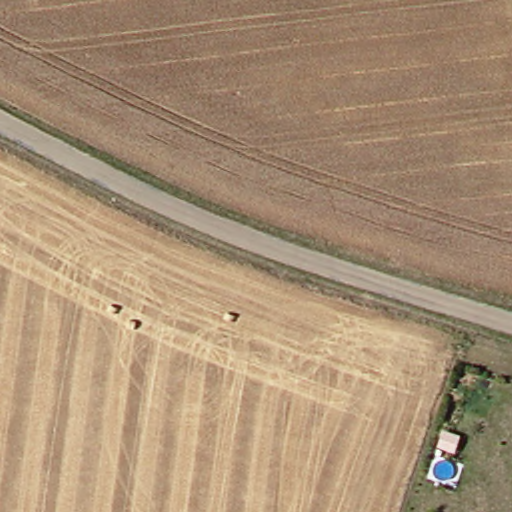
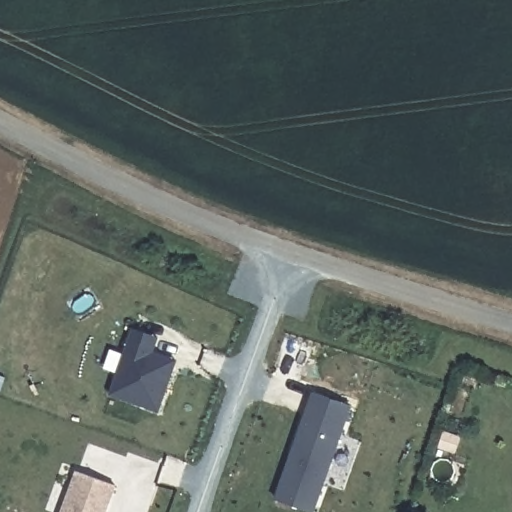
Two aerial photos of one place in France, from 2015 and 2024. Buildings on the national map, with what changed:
new [(132,327),(155,335),(151,350),(165,355),(175,357),(172,367),(159,408),(111,392),(127,342),(132,327)]
new [(316,394),(352,407),(315,512),(312,512),(295,506),(278,500),(316,394)]
new [(117,484),(107,512),(65,512),(79,470),(117,484)]

